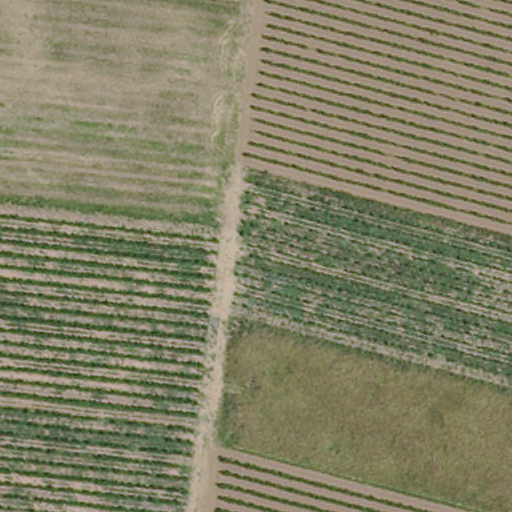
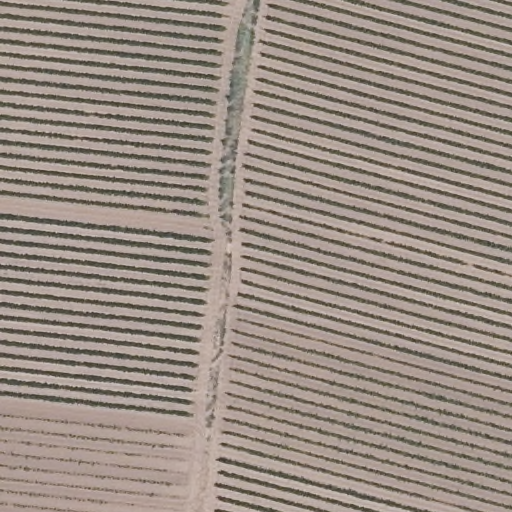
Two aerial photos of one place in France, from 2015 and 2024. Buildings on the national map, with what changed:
[]

